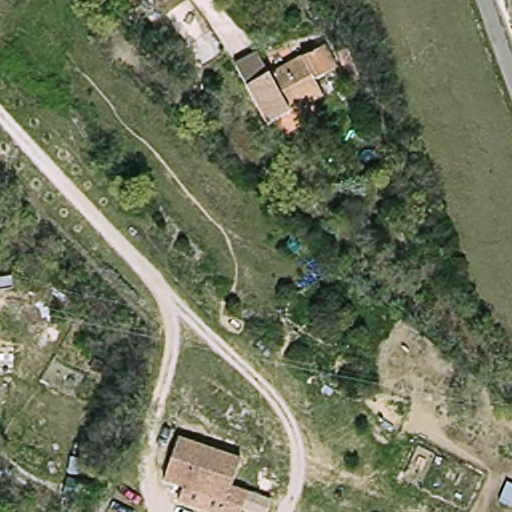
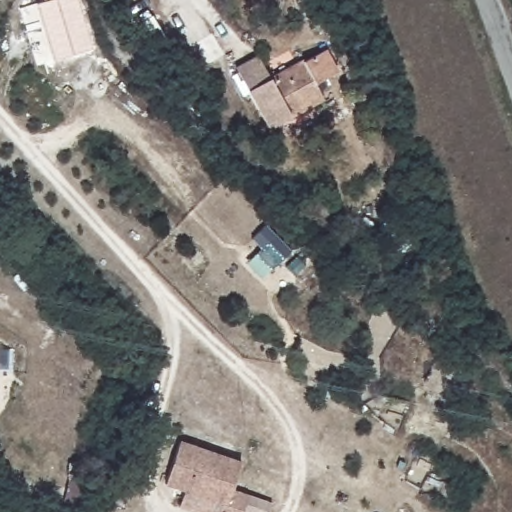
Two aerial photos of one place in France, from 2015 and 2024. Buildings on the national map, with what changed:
new [(44,1),(44,0),(77,0),(91,47),(52,60),(35,2),(44,1)]
unchanged [(297,112),(254,127),(239,85),(230,61),(258,51),(268,75),(326,56),(335,82),(311,91),(316,107),(297,112)]
unchanged [(231,461),(223,485),(242,492),(235,512),(202,512),(173,502),(178,491),(158,483),(173,439),(231,461)]

